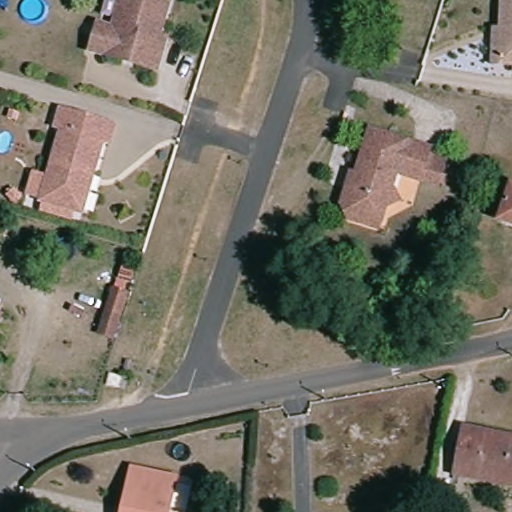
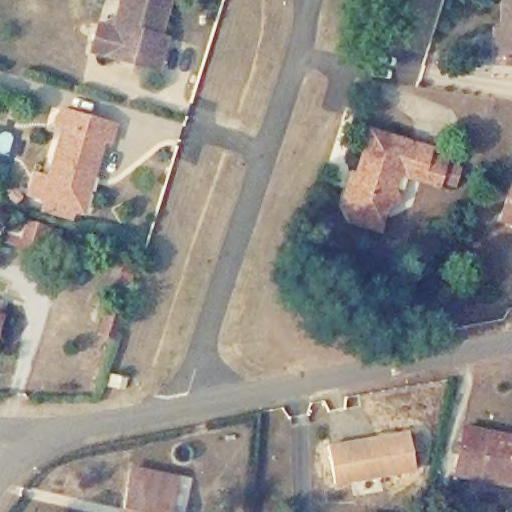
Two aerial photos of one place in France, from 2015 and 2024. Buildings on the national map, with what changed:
unchanged [(148,70),(89,53),(96,25),(111,30),(120,0),(157,0),(168,3),(157,38),(164,41),(154,72),(148,70)]
unchanged [(499,63),(492,63),(493,27),(500,26),(501,0),(512,0),(512,63),(499,63)]
unchanged [(70,210),(36,200),(56,126),(50,125),(55,109),(108,124),(103,141),(97,140),(87,174),(76,212),(70,210)]
unchanged [(373,229),(354,224),(344,208),(349,195),(355,197),(374,135),(432,152),(430,161),(446,166),(439,189),(422,184),(399,177),(393,193),(399,204),(389,210),(382,232),(373,229)]
unchanged [(487,215),(499,181),(512,185),(512,223),(487,215)]
unchanged [(118,341),(95,337),(106,285),(130,292),(118,341)]
unchanged [(128,385),(111,381),(114,369),(130,372),(128,385)]
unchanged [(512,434),(512,483),(457,473),(467,426),(512,434)]
new [(328,444),(407,430),(414,470),(334,484),(328,444)]
unchanged [(126,509),(133,470),(178,477),(171,512),(125,512),(126,509)]

